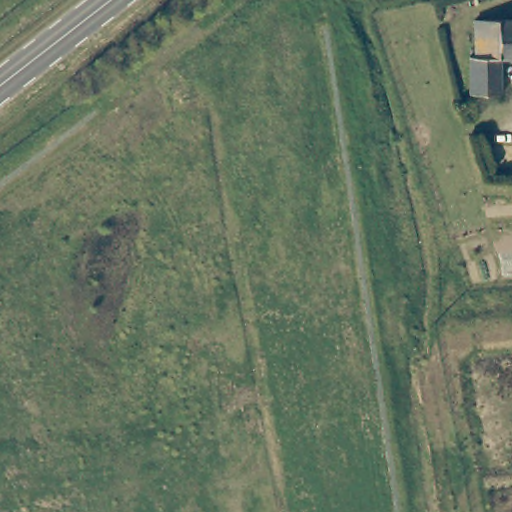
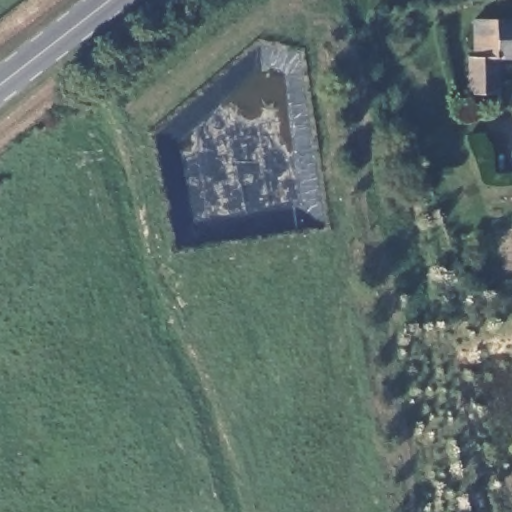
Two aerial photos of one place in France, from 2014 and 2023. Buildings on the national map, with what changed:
unchanged [(499,95),(467,95),(466,59),(474,59),(476,20),(512,21),(512,63),(501,62),(499,95)]

